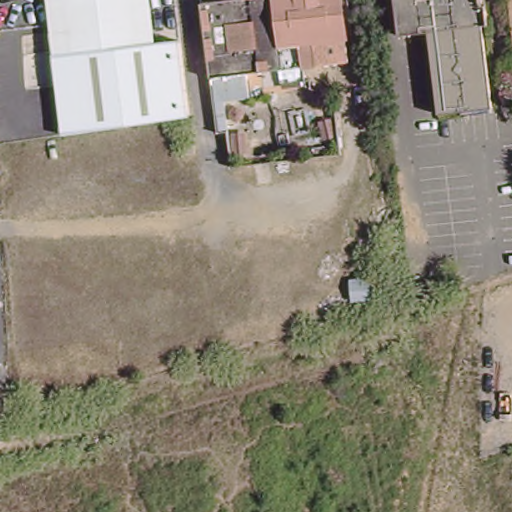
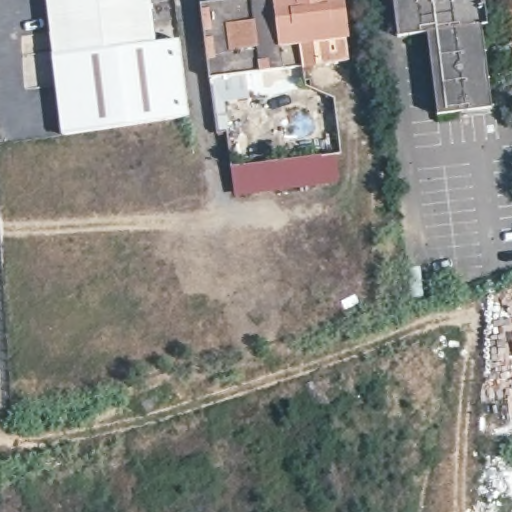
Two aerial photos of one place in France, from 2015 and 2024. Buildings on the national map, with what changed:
unchanged [(145,43),(45,55),(39,0),(140,0),(145,43)]
unchanged [(343,61),(300,66),(266,71),(204,78),(196,4),(227,0),(336,0),(343,61)]
unchanged [(479,6),(485,5),(488,25),(482,26),(492,108),(437,115),(427,33),(398,36),(393,0),(478,0),(479,6)]
unchanged [(510,0),(512,0),(512,15),(510,0)]
unchanged [(179,34),(191,114),(58,134),(45,55),(145,43),(179,34)]
new [(238,197),(234,167),(335,153),(339,183),(238,197)]

